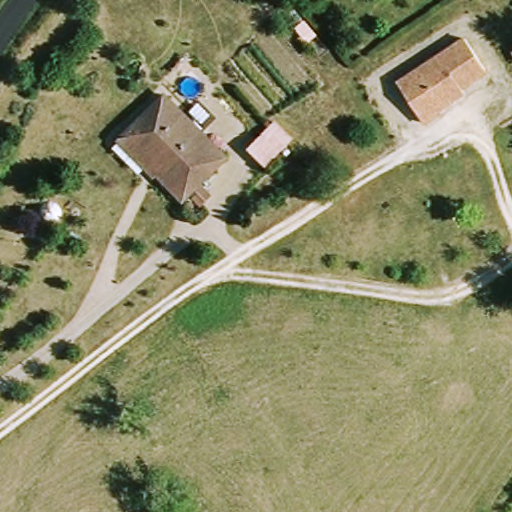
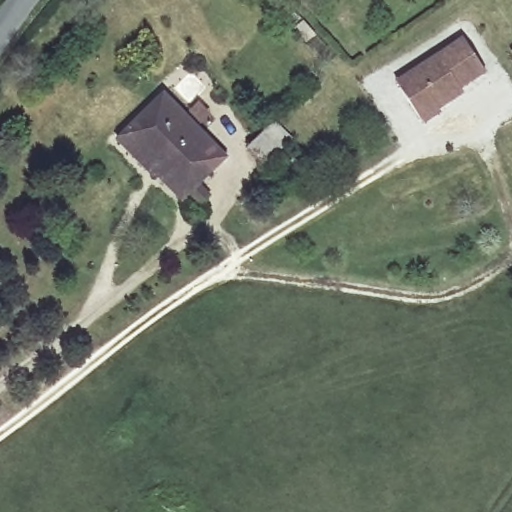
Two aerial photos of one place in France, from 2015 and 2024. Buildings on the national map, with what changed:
unchanged [(412,73),(467,39),(487,74),(462,89),(464,94),(454,99),(439,108),(441,113),(422,122),(407,96),(397,81),(412,73)]
unchanged [(118,142),(128,133),(164,96),(224,161),(181,202),(155,174),(150,178),(118,142)]

